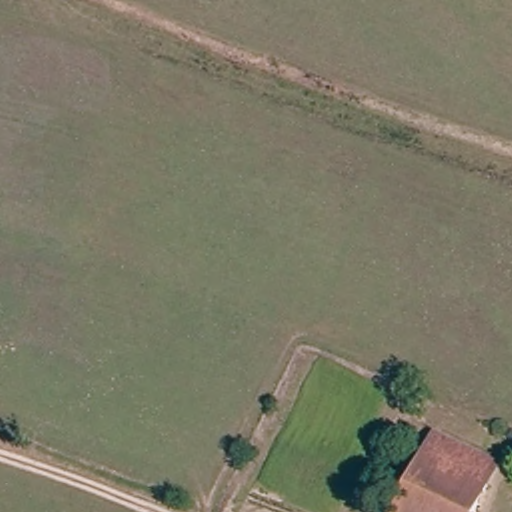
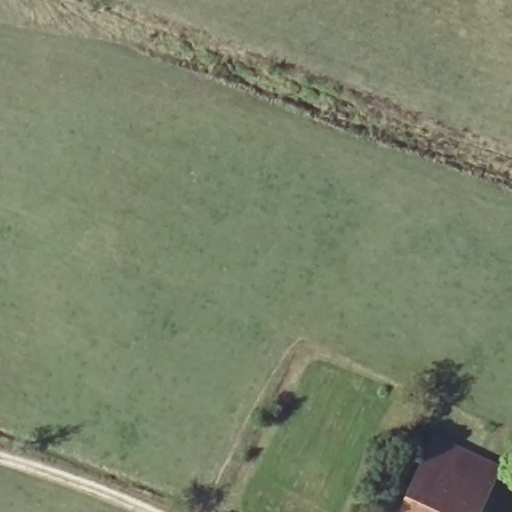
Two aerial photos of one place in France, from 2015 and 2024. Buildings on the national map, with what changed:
unchanged [(495,468),(475,512),(402,512),(435,439),(495,468)]
unchanged [(512,452),(512,468),(484,451),(489,439),(512,452)]

